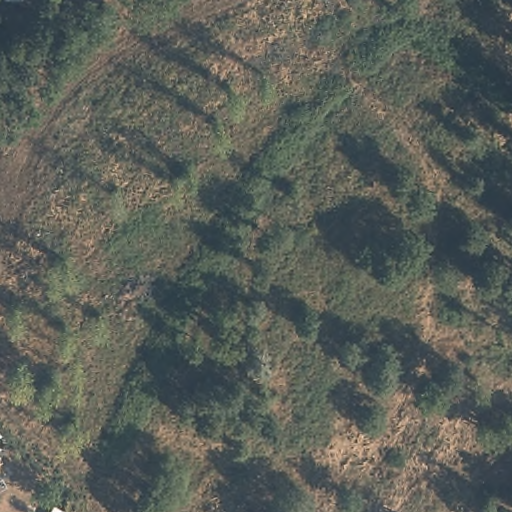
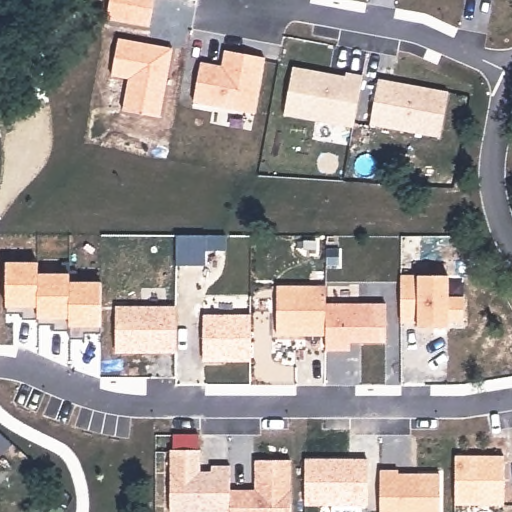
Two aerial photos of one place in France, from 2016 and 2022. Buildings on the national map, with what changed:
new [(110,0),(157,0),(152,29),(106,20),(110,0)]
new [(173,49),(160,117),(122,111),(128,80),(110,76),(117,39),(173,49)]
new [(222,65),(224,50),(265,57),(254,115),(193,104),(200,62),(222,65)]
new [(293,67),(346,76),(346,72),(364,75),(354,129),(284,117),(293,67)]
new [(379,79),(448,92),(440,139),(370,127),(379,79)]
new [(400,275),(418,276),(448,276),(449,296),(465,297),(464,323),(448,322),(448,328),(417,327),(417,322),(400,323),(400,275)]
new [(277,286),(326,285),(327,302),(386,302),(388,343),(351,343),(351,352),(325,352),(325,337),(276,337),(277,286)]
new [(116,306),(177,306),(177,353),(115,355),(116,306)]
new [(203,315),(251,315),(252,362),(203,363),(203,315)]
new [(292,460),(292,512),(170,512),(169,450),(202,450),(202,470),(210,471),(211,465),(231,466),(231,489),(255,489),(254,460),(292,460)]
new [(455,456),(505,456),(504,506),(455,506),(455,456)]
new [(304,458),(369,458),(370,507),(305,507),(304,458)]
new [(399,470),(399,473),(441,473),(441,512),(380,512),(379,470),(399,470)]

